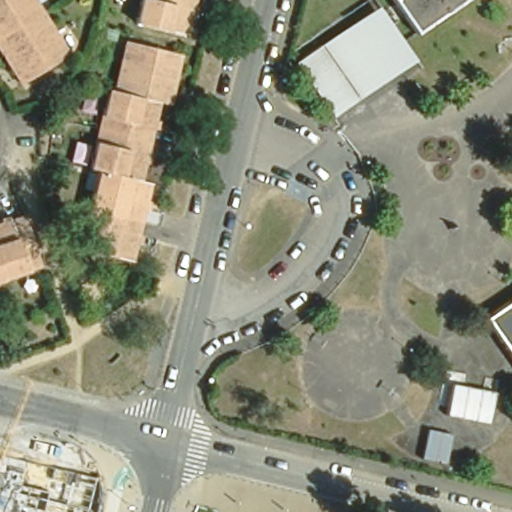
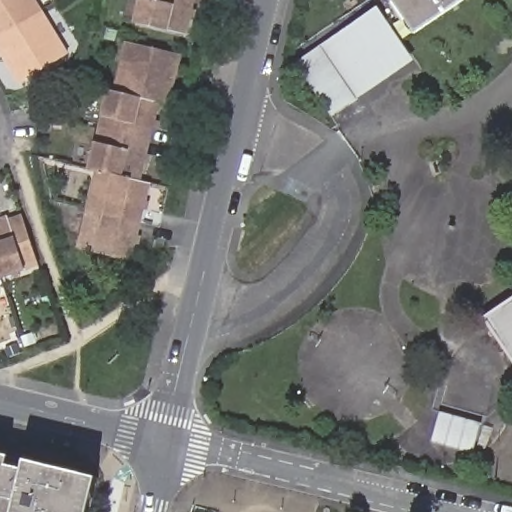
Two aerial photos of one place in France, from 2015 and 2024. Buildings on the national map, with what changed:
unchanged [(0,50),(0,0),(33,0),(67,57),(27,81),(21,85),(10,66),(0,50)]
unchanged [(135,30),(142,0),(152,0),(144,32),(135,30)]
unchanged [(144,32),(152,0),(193,0),(183,42),(144,32)]
unchanged [(397,0),(462,0),(417,30),(397,0)]
unchanged [(371,19),(405,72),(396,79),(360,25),(371,19)]
unchanged [(352,30),(387,85),(377,91),(342,37),(352,30)]
unchanged [(84,249),(104,170),(94,167),(112,92),(117,94),(131,44),(145,47),(95,251),(95,252),(84,249)]
unchanged [(333,44),(368,96),(358,104),(322,51),(333,44)]
unchanged [(145,47),(177,55),(185,57),(180,76),(172,106),(161,104),(142,180),(154,182),(135,261),(95,252),(95,251),(145,47)]
unchanged [(312,57),(347,111),(338,117),(302,64),(312,57)]
unchanged [(40,271),(0,283),(0,228),(25,221),(40,271)]
unchanged [(480,317),(512,296),(512,366),(480,317)]
new [(438,413),(480,425),(472,456),(430,445),(438,413)]
new [(7,466),(24,470),(16,501),(0,497),(0,455),(9,457),(7,466)]
new [(16,501),(24,470),(26,461),(97,478),(89,512),(13,512),(16,501)]

